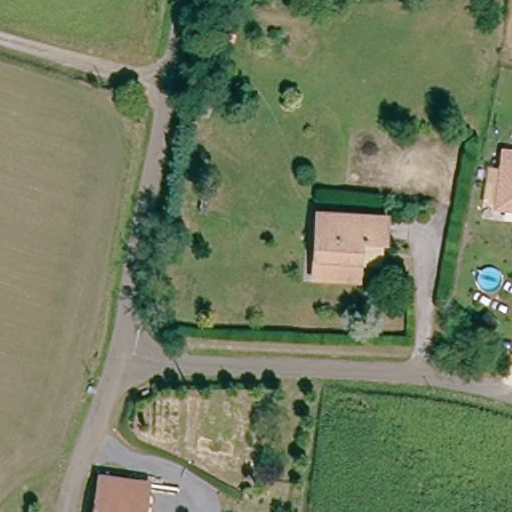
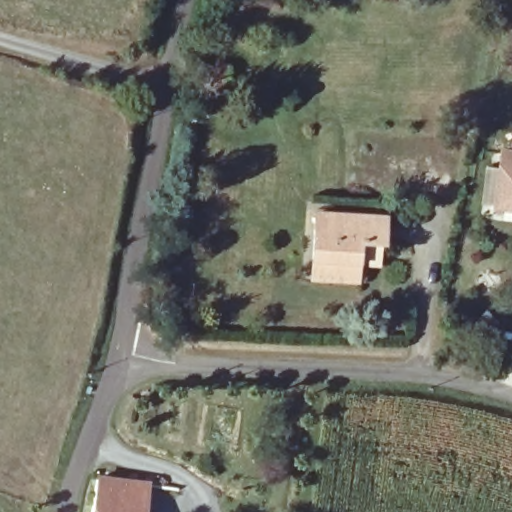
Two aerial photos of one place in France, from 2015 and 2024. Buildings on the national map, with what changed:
unchanged [(493,208),(500,149),(512,150),(512,210),(493,208)]
unchanged [(353,272),(312,266),(320,207),(388,216),(385,238),(358,235),(353,272)]
unchanged [(147,512),(101,512),(105,475),(150,482),(147,512)]

